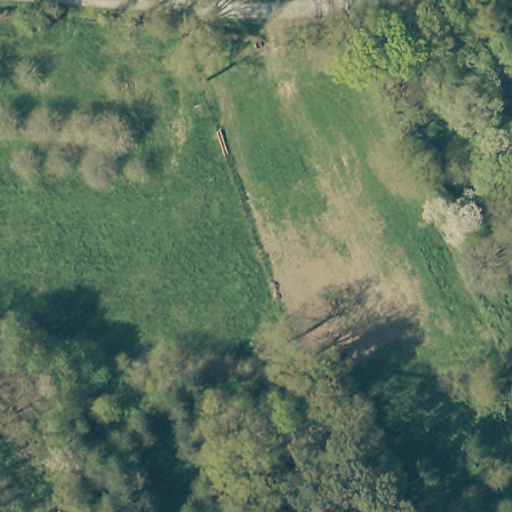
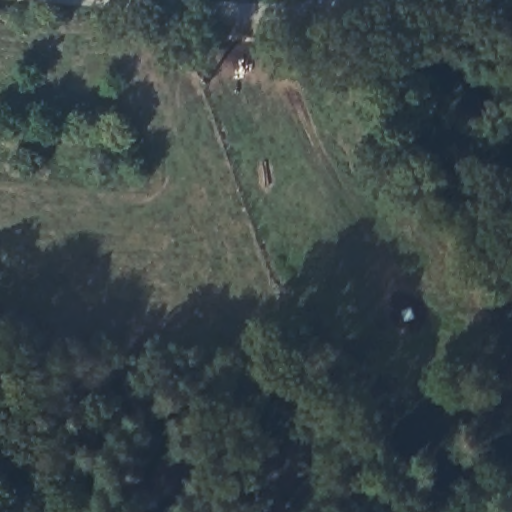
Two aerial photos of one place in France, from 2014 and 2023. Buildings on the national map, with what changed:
[]

